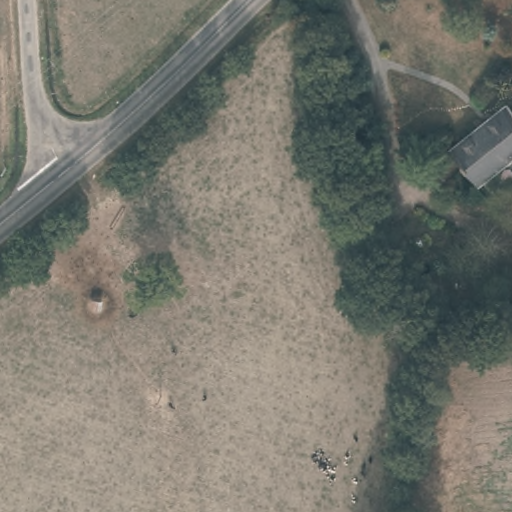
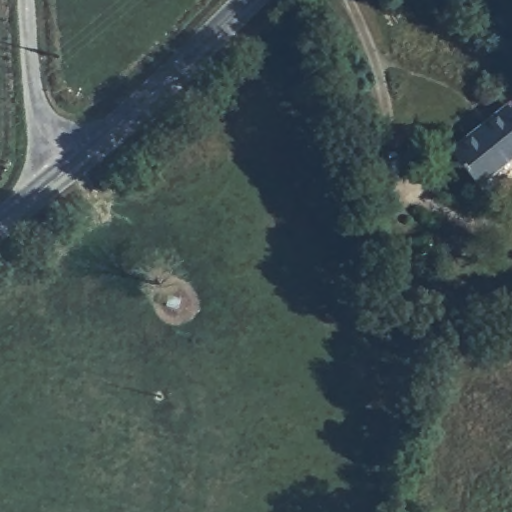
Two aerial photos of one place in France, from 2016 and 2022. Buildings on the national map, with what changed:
unchanged [(512,123),(512,157),(473,188),(448,152),(502,110),(512,123)]

